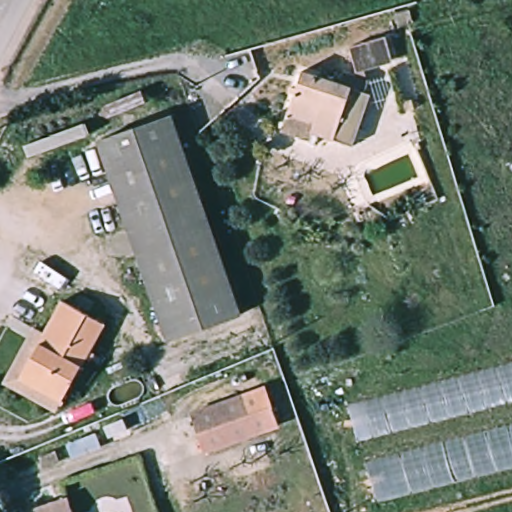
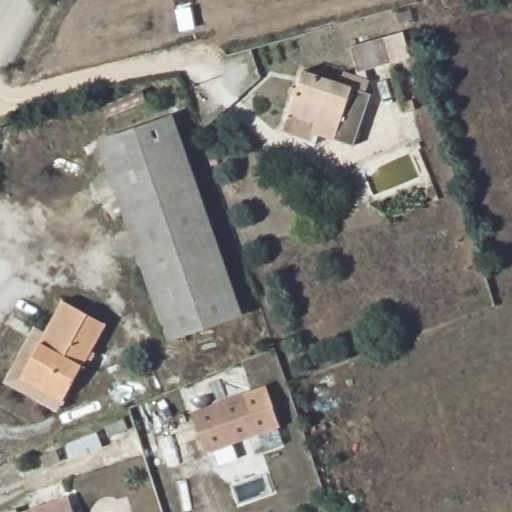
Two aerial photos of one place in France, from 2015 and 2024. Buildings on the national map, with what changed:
unchanged [(392,60),(356,70),(350,47),(386,37),(392,60)]
unchanged [(350,145),(335,139),(313,132),(311,140),(282,130),(302,72),(339,84),(343,72),(352,75),(348,87),(351,88),(346,103),(362,108),(350,145)]
unchanged [(241,315),(167,340),(99,140),(172,115),(241,315)]
unchanged [(63,400),(21,377),(45,332),(62,301),(104,323),(63,400)]
unchanged [(63,400),(58,410),(6,382),(35,327),(45,332),(21,377),(63,400)]
demolished [(512,367),(512,469),(375,502),(349,410),(512,367)]
unchanged [(278,428),(207,453),(192,412),(263,386),(278,428)]
unchanged [(73,457),(68,446),(97,433),(102,445),(73,457)]
unchanged [(46,468),(41,457),(57,452),(61,462),(46,468)]
unchanged [(22,511),(64,497),(69,512),(23,512),(22,511)]

